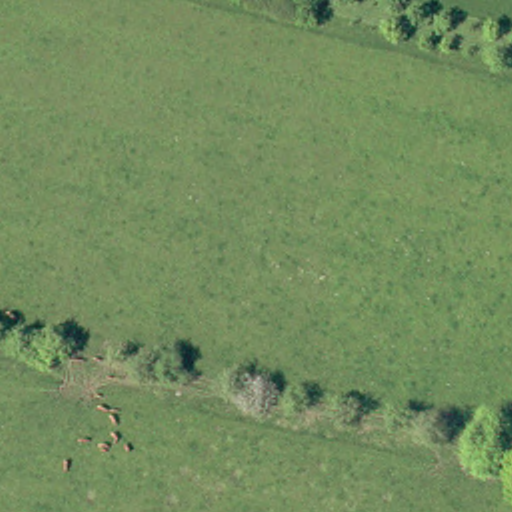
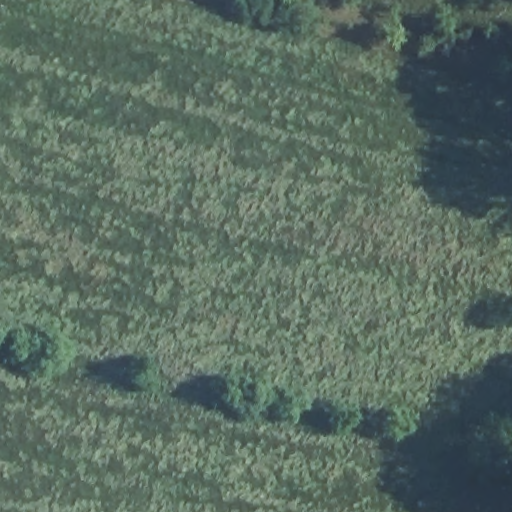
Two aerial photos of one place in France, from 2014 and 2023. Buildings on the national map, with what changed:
[]

